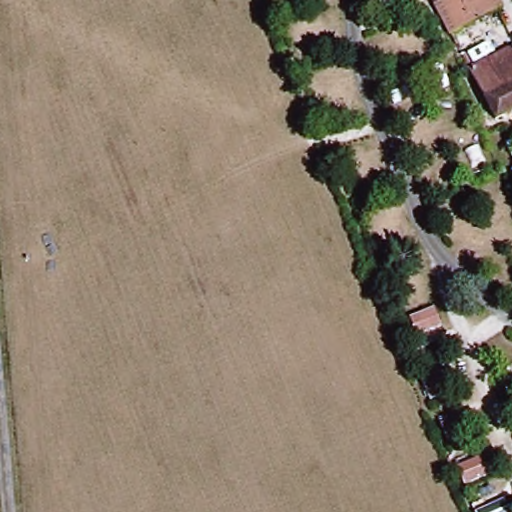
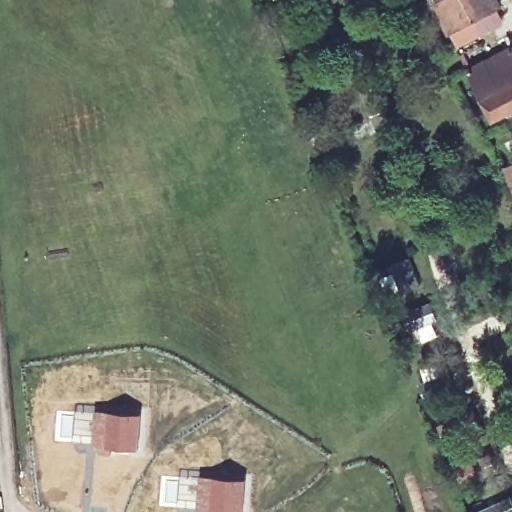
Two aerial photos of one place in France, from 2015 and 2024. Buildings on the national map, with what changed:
unchanged [(444,0),(493,0),(496,8),(447,29),(435,3),(444,0)]
unchanged [(470,70),(512,49),(512,111),(494,120),(470,70)]
new [(512,166),(512,182),(507,169),(512,166)]
new [(92,410),(142,413),(139,452),(90,451),(92,410)]
new [(197,475),(245,478),(243,512),(195,512),(197,475)]

